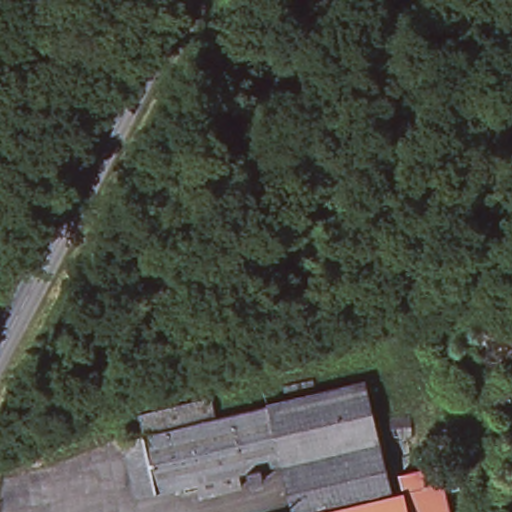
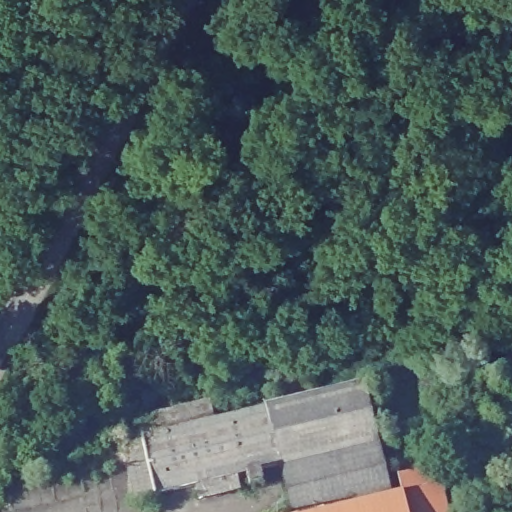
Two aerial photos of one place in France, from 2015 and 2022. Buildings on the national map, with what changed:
unchanged [(197,500),(194,488),(152,498),(143,500),(132,503),(117,447),(130,444),(137,442),(132,422),(206,402),(212,423),(282,403),(279,391),(307,383),(311,396),(360,382),(376,442),(277,467),(255,472),(259,483),(247,487),(244,476),(234,478),(237,490),(197,500)]
unchanged [(277,467),(376,442),(387,489),(390,495),(392,495),(400,493),(399,486),(396,475),(432,466),(435,475),(444,512),(288,512),(277,467)]

